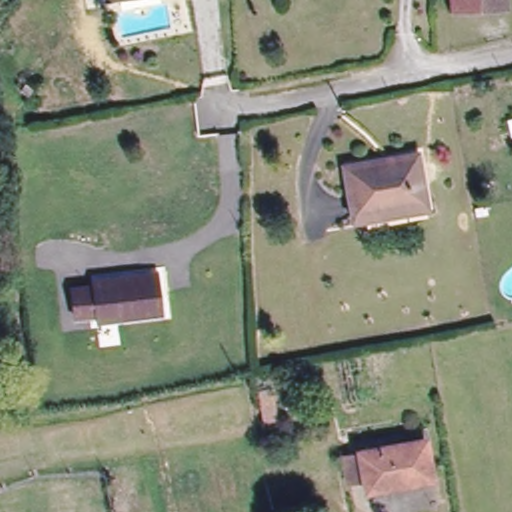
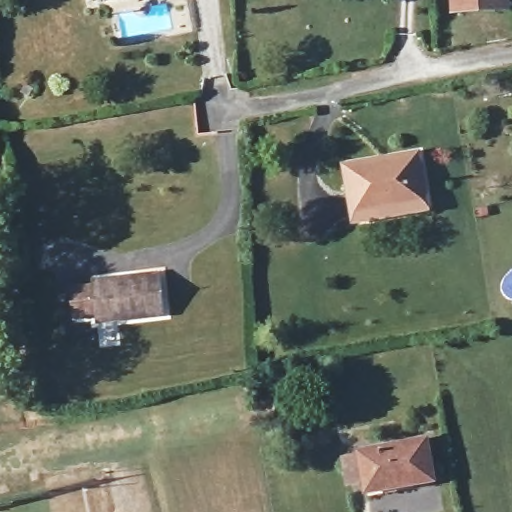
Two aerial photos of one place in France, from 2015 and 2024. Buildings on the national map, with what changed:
unchanged [(92,0),(99,0),(92,1),(92,0)]
unchanged [(106,0),(120,0),(106,1),(106,0)]
unchanged [(120,0),(159,0),(122,8),(120,0)]
unchanged [(457,3),(457,0),(501,0),(501,2),(457,3)]
unchanged [(416,156),(423,202),(354,214),(347,168),(416,156)]
unchanged [(161,272),(165,315),(122,319),(121,309),(100,311),(78,314),(77,287),(97,286),(97,281),(161,272)]
unchanged [(351,456),(367,454),(366,450),(428,440),(436,479),(372,489),(370,481),(354,483),(351,456)]

